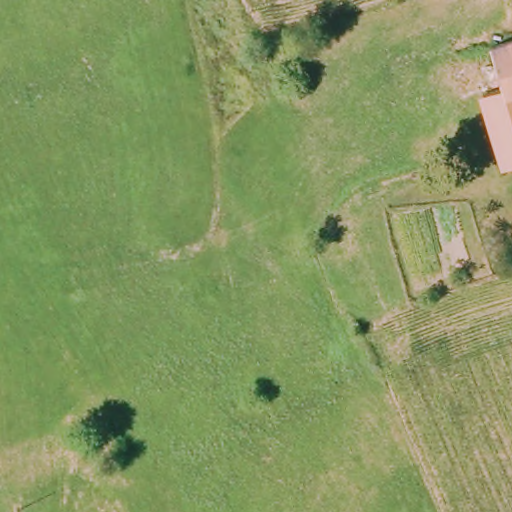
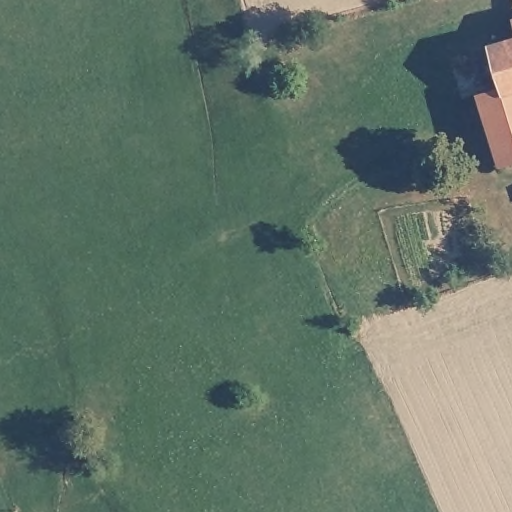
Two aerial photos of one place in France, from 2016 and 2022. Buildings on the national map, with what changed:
unchanged [(479,94),(502,88),(492,45),(512,38),(512,159),(499,164),(479,94)]

